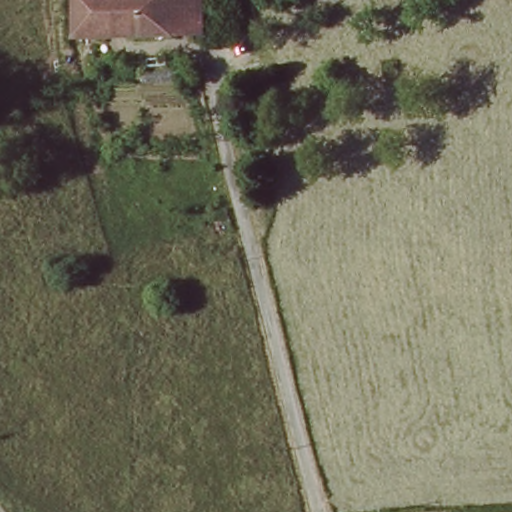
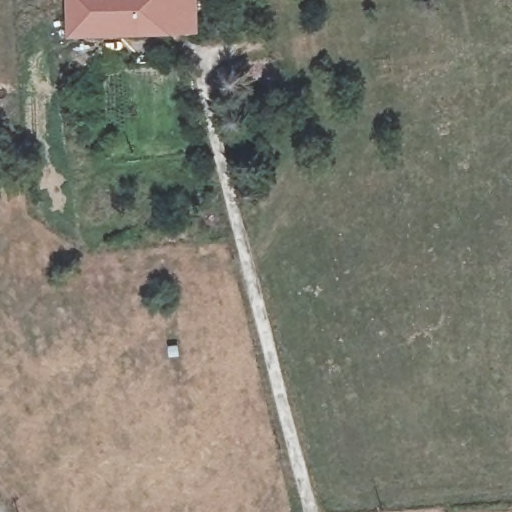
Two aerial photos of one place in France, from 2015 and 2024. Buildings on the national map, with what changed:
unchanged [(72,36),(69,0),(194,0),(194,32),(72,36)]

